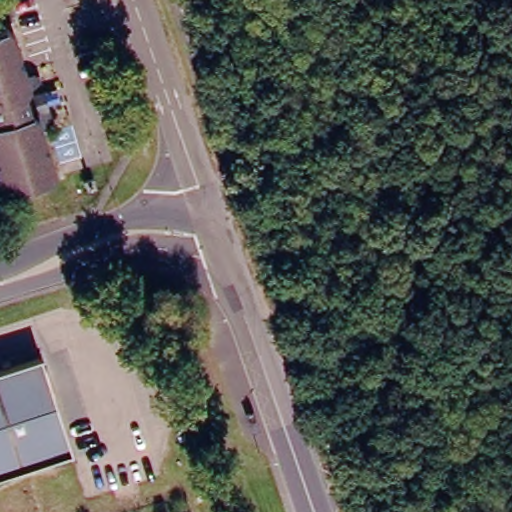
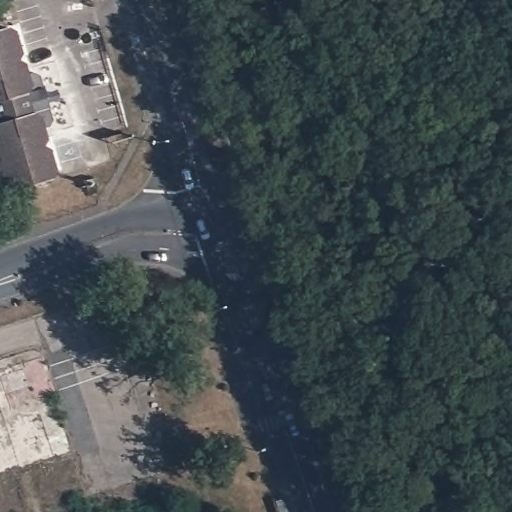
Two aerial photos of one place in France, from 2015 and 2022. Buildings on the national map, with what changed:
unchanged [(20,57),(18,64),(23,70),(27,79),(34,77),(43,82),(54,125),(51,132),(43,135),(46,147),(43,153),(49,159),(56,177),(52,189),(10,201),(0,197),(0,195),(0,29),(2,29),(13,34),(20,57)]
demolished [(37,357),(65,453),(56,456),(41,406),(27,361),(37,357)]
demolished [(41,406),(0,419),(0,369),(27,361),(41,406)]
demolished [(0,473),(0,419),(41,406),(56,456),(0,473)]

